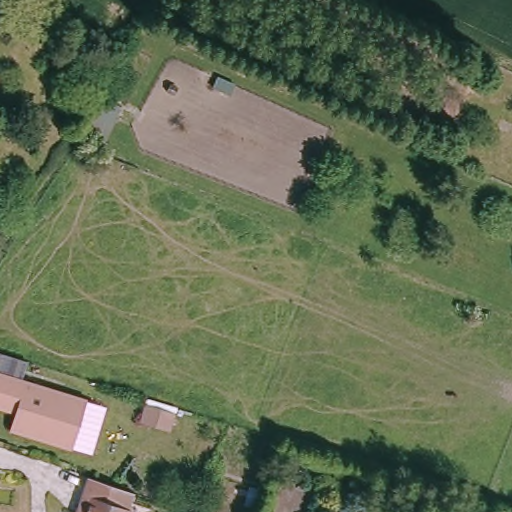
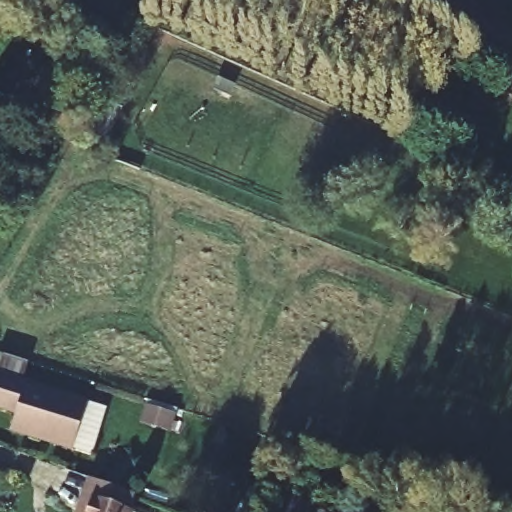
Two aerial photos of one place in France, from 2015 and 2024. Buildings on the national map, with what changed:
unchanged [(12,410),(0,407),(0,381),(81,405),(67,451),(6,433),(12,410)]
unchanged [(133,494),(128,510),(133,512),(80,512),(90,480),(133,494)]

